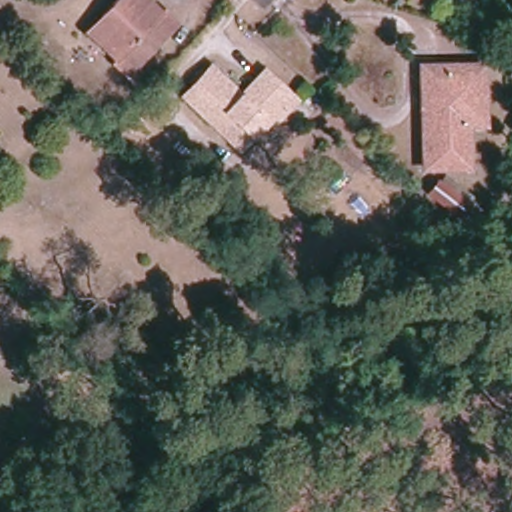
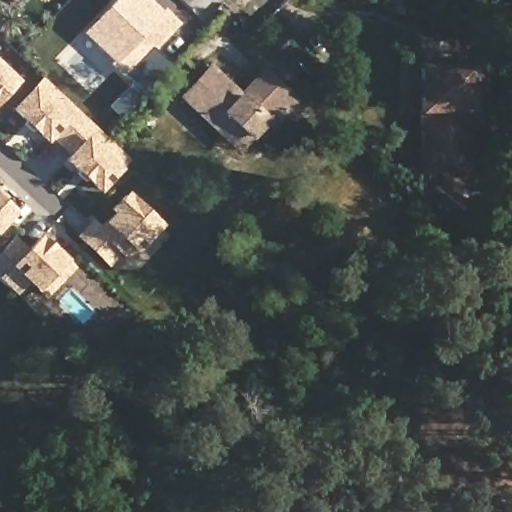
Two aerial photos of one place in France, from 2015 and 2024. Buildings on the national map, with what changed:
unchanged [(102,19),(120,0),(145,0),(160,14),(163,11),(176,24),(126,77),(113,64),(116,61),(101,46),(115,31),(102,19)]
new [(0,63),(19,81),(0,101),(0,63)]
unchanged [(213,122),(182,92),(210,63),(241,92),(264,67),(295,97),(283,109),(277,104),(265,117),(250,133),(225,109),(213,122)]
unchanged [(464,125),(465,167),(423,168),(420,68),(469,67),(470,125),(464,125)]
new [(85,121),(61,146),(51,135),(45,141),(15,112),(43,82),(85,121)]
new [(98,191),(67,162),(73,156),(61,146),(85,121),(126,161),(98,191)]
unchanged [(464,203),(461,206),(474,217),(467,226),(427,195),(437,182),(464,203)]
new [(0,193),(17,210),(0,228),(0,193)]
new [(133,256),(126,249),(114,261),(86,235),(99,222),(106,229),(123,211),(120,207),(133,194),(164,223),(133,256)]
new [(33,277),(19,291),(0,273),(0,257),(18,239),(31,251),(45,236),(76,266),(49,292),(33,277)]

